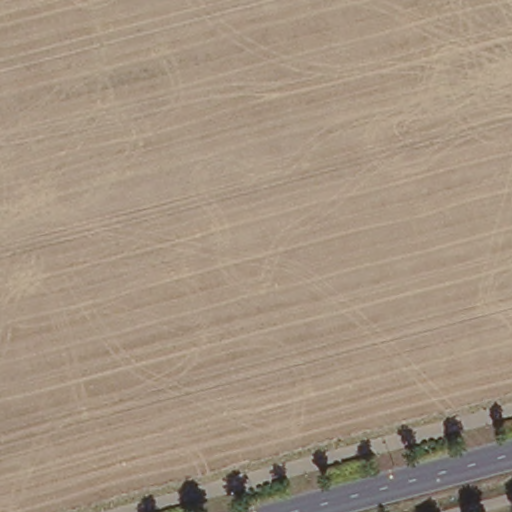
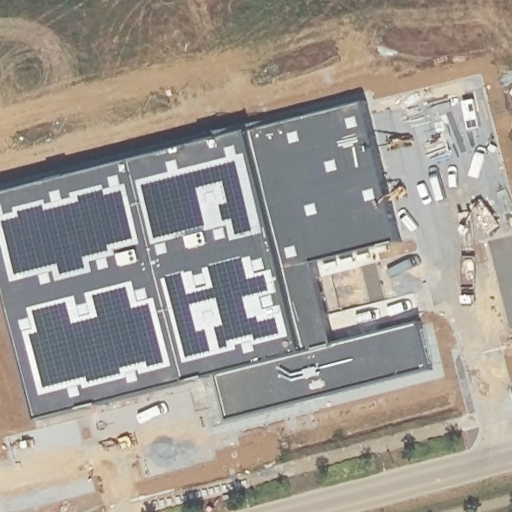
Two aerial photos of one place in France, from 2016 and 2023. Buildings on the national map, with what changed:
new [(400,242),(317,264),(337,346),(421,323),(432,370),(229,422),(218,375),(44,419),(0,251),(0,196),(367,103),(400,242)]

